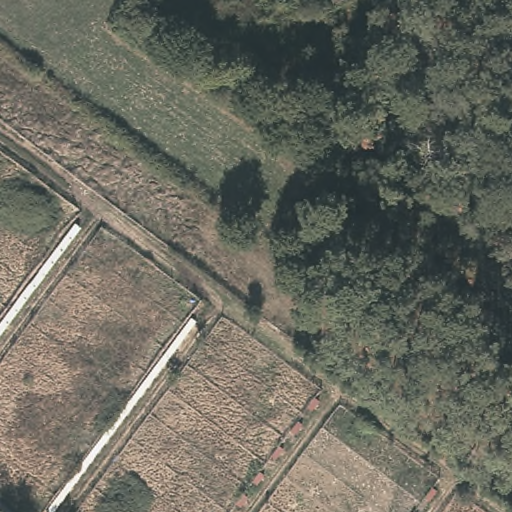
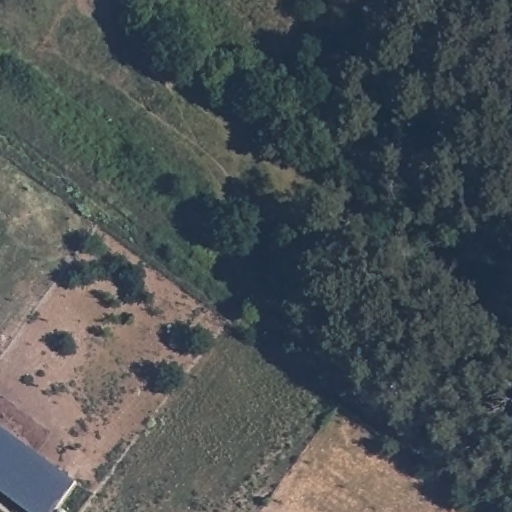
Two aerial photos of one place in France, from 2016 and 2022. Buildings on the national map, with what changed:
new [(57,512),(28,512),(0,491),(0,426),(79,483),(57,512)]

